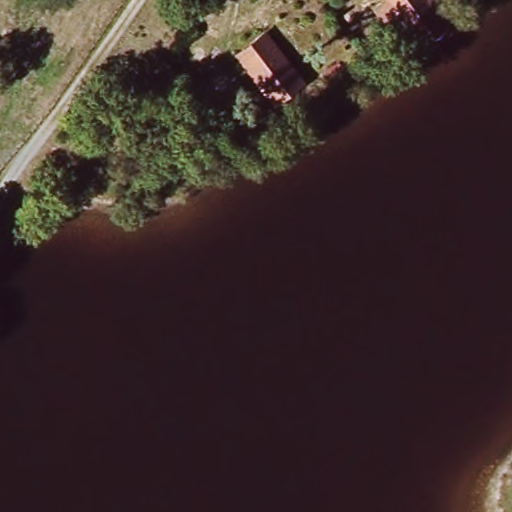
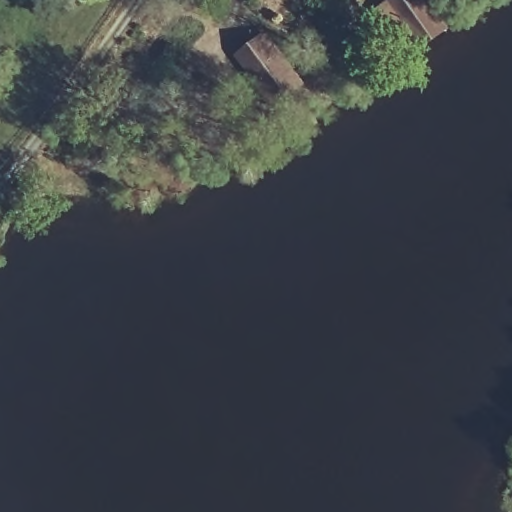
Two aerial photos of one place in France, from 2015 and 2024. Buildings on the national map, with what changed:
unchanged [(374,5),(384,0),(433,0),(452,28),(425,50),(407,27),(392,37),(374,5)]
unchanged [(283,98),(274,87),(246,51),(272,31),(300,67),(308,80),(283,98)]

